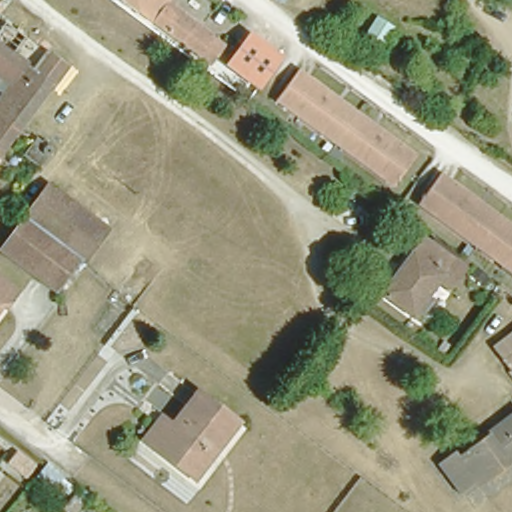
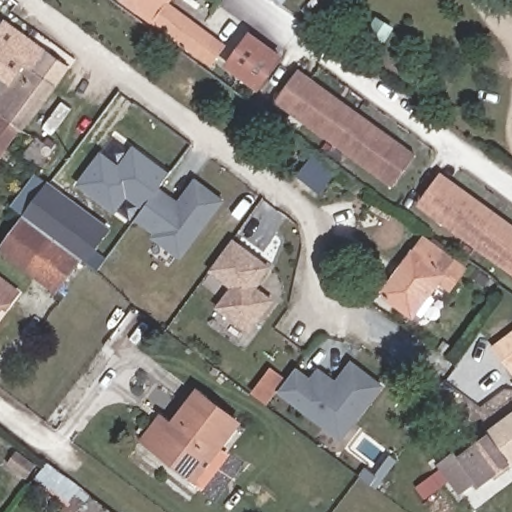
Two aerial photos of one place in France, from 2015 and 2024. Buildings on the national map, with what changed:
unchanged [(205,55),(185,42),(177,35),(128,0),(167,0),(162,7),(186,23),(194,29),(213,44),(205,55)]
unchanged [(277,3),(273,0),(279,0),(277,3)]
unchanged [(0,106),(0,93),(12,75),(0,66),(0,21),(4,15),(25,30),(14,47),(30,59),(42,43),(62,56),(23,120),(0,106)]
new [(257,92),(224,66),(248,30),(283,55),(257,92)]
unchanged [(277,99),(292,76),(409,161),(393,183),(277,99)]
unchanged [(0,152),(0,106),(23,120),(0,152)]
new [(195,178),(222,201),(180,259),(152,238),(154,234),(134,218),(142,209),(127,198),(116,212),(78,182),(101,152),(117,165),(132,145),(169,173),(160,187),(177,201),(195,178)]
new [(319,195),(295,177),(312,156),(336,173),(319,195)]
unchanged [(87,254),(84,252),(81,249),(57,282),(5,244),(24,217),(11,206),(37,172),(52,189),(62,195),(74,202),(105,224),(87,254)]
unchanged [(436,174),(512,228),(512,263),(421,198),(436,174)]
new [(270,266),(256,285),(275,299),(249,334),(214,308),(228,289),(207,272),(232,237),(270,266)]
unchanged [(440,258),(436,265),(443,273),(439,278),(433,275),(410,306),(416,312),(409,320),(372,291),(406,247),(410,247),(417,239),(440,258)]
unchanged [(15,289),(4,303),(0,302),(0,278),(15,289)]
unchanged [(512,365),(493,342),(512,326),(512,365)]
new [(317,367),(335,380),(351,359),(384,384),(341,442),(275,393),(296,365),(311,376),(317,367)]
unchanged [(230,412),(238,418),(212,447),(209,444),(189,467),(155,439),(144,430),(160,410),(171,419),(198,386),(230,412)]
unchanged [(512,460),(481,483),(475,475),(460,483),(441,455),(457,445),(462,450),(511,413),(512,413),(512,460)]

